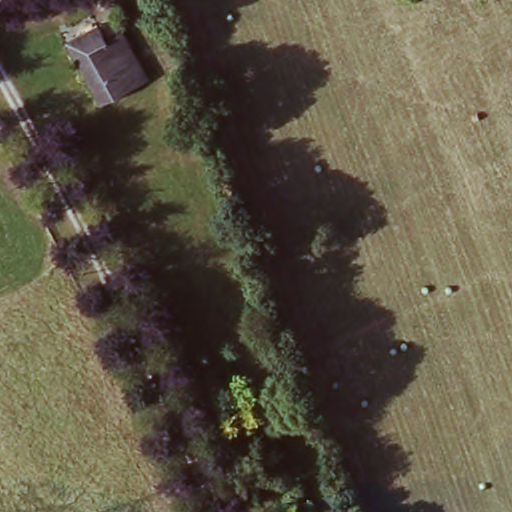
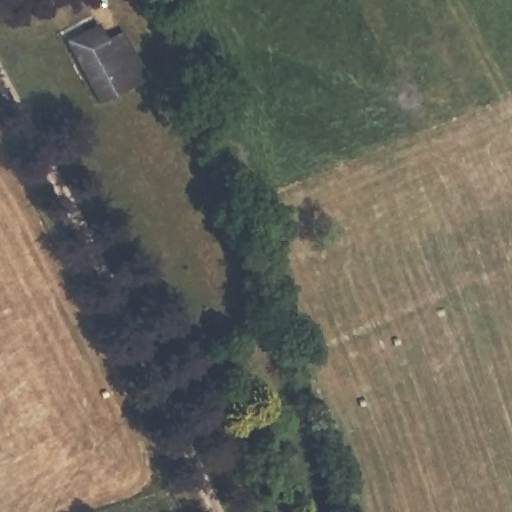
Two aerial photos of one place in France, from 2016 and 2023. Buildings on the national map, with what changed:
unchanged [(88,46),(111,97),(99,104),(69,40),(99,27),(104,38),(88,46)]
unchanged [(122,30),(145,80),(111,97),(88,46),(104,38),(122,30)]

